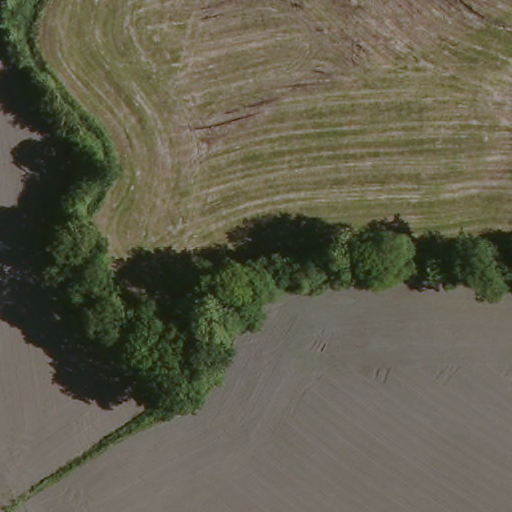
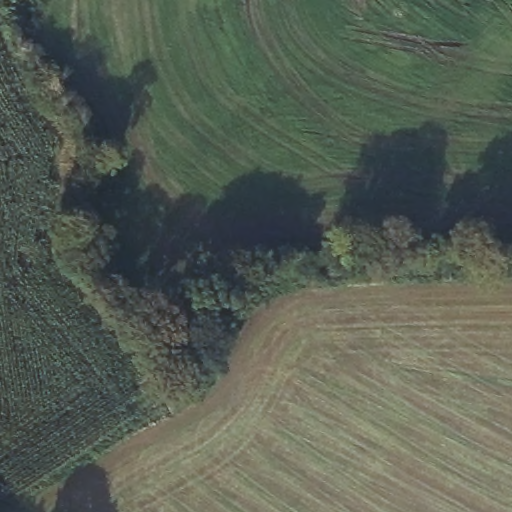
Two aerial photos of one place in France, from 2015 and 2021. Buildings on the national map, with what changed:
[]

